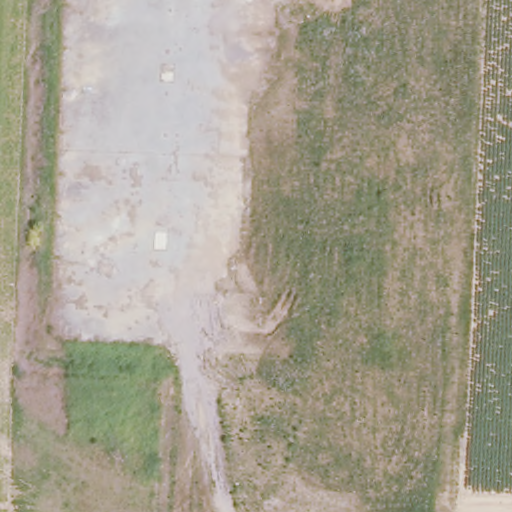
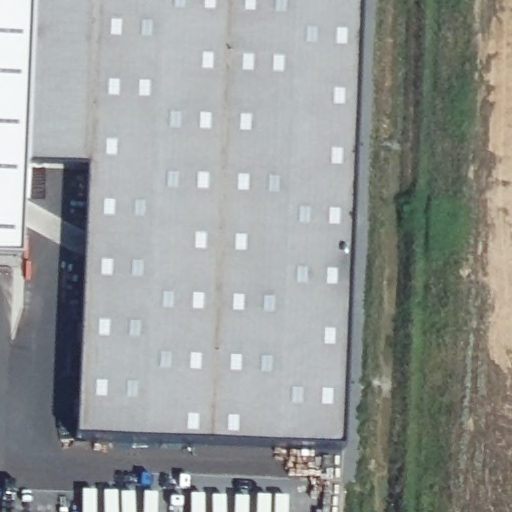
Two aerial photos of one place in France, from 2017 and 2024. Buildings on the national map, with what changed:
new [(0,258),(0,0),(33,0),(22,258),(0,258)]
new [(361,0),(341,450),(75,437),(85,169),(26,166),(32,0),(361,0)]

